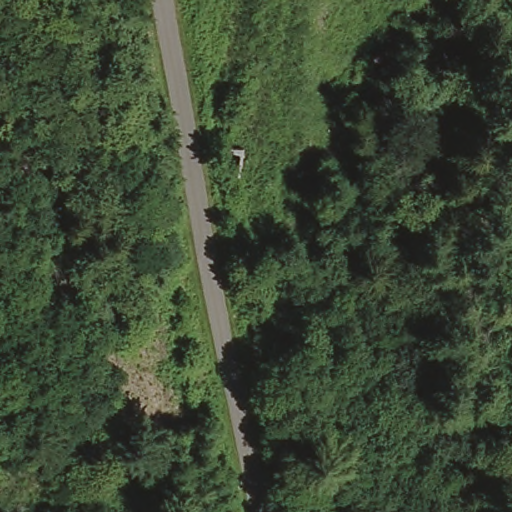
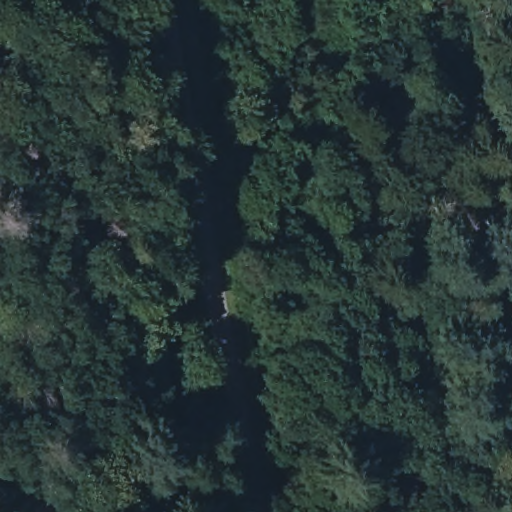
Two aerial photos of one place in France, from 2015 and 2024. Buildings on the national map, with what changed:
unchanged [(238,162),(212,156),(221,126),(247,134),(238,162)]

